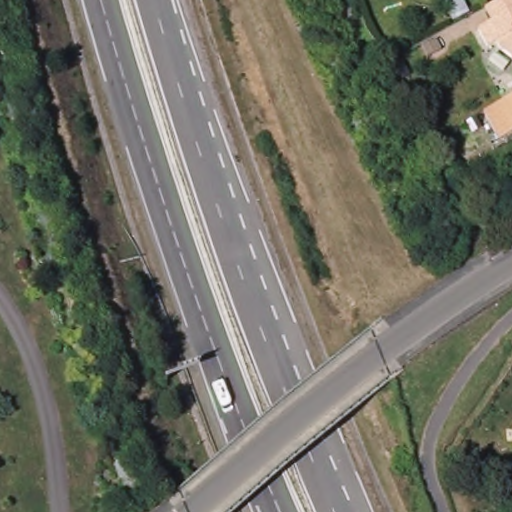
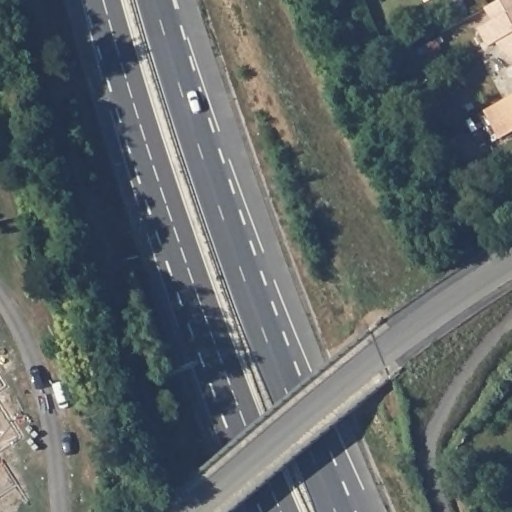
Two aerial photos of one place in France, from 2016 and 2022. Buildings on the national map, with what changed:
unchanged [(497,42),(488,47),(479,29),(493,22),(486,8),(501,0),(512,0),(512,58),(501,49),(497,42)]
unchanged [(512,96),(512,125),(500,103),(512,96)]

